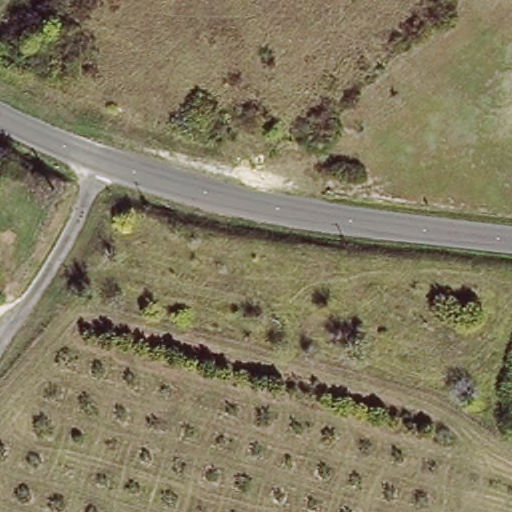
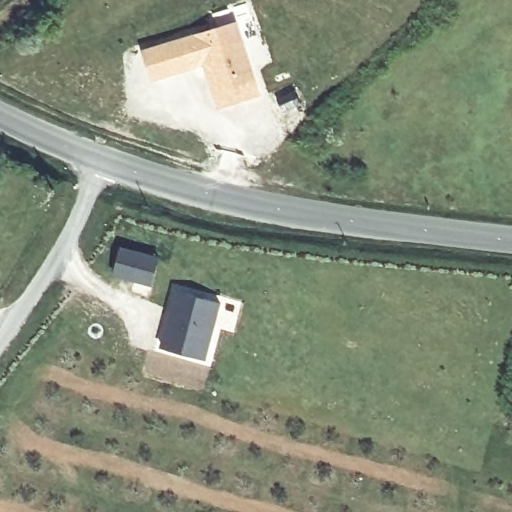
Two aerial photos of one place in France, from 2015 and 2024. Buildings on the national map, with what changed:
new [(235,20),(239,35),(258,95),(216,108),(205,72),(202,62),(149,79),(141,50),(215,26),(235,20)]
new [(174,290),(219,302),(204,358),(159,346),(174,290)]

